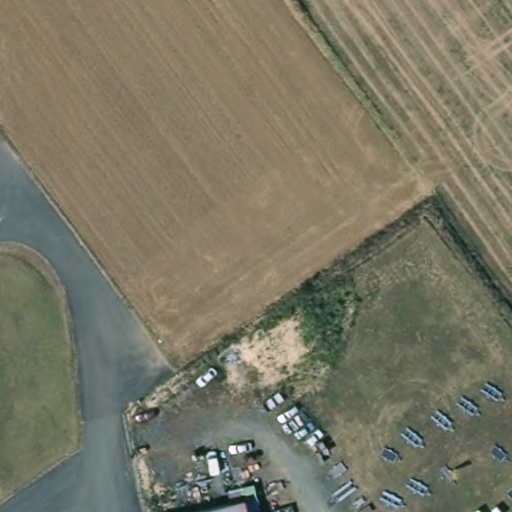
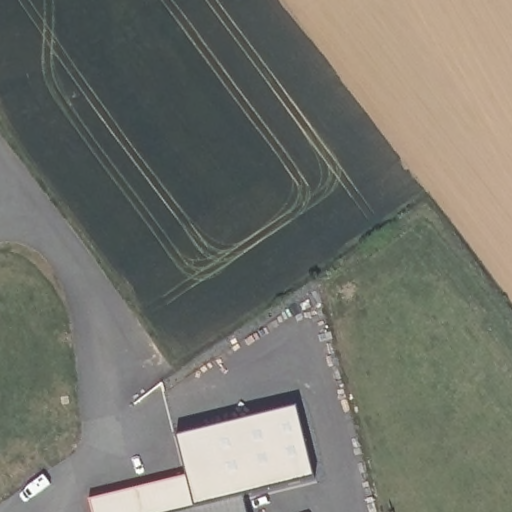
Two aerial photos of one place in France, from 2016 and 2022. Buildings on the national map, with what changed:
new [(88,499),(187,475),(177,436),(297,406),(314,476),(243,494),(244,498),(196,511),(192,512),(92,512),(88,499)]
unchanged [(244,498),(248,512),(192,512),(244,498)]

